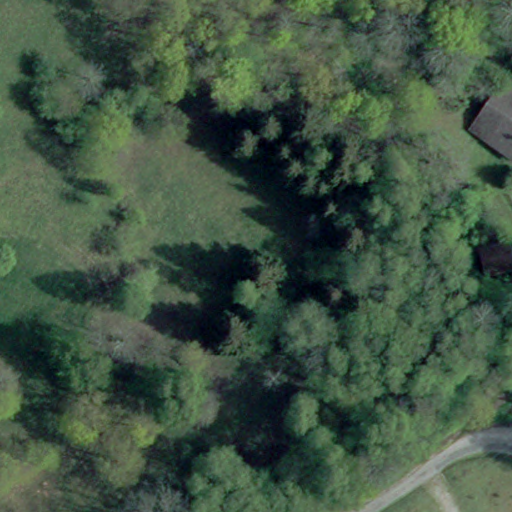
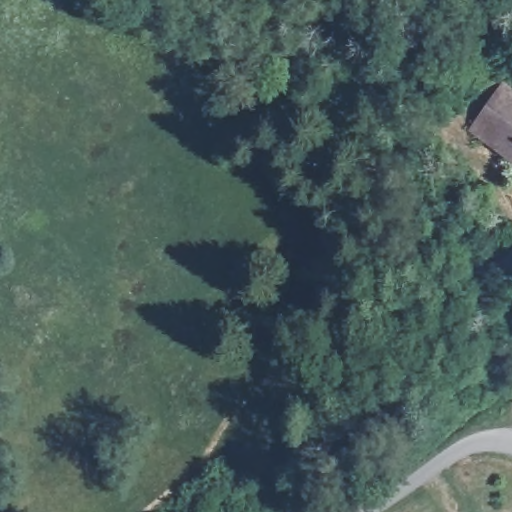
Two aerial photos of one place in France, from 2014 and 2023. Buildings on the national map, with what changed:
unchanged [(470,131),(501,86),(512,94),(512,152),(509,157),(470,131)]
unchanged [(472,206),(448,221),(431,199),(452,183),(472,206)]

